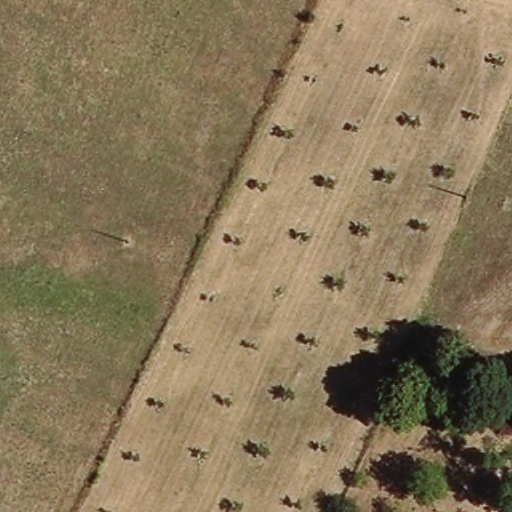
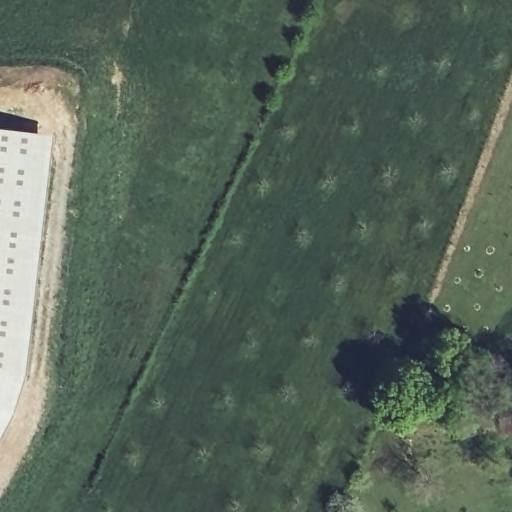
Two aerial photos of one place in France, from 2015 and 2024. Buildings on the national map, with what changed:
new [(14,415),(0,442),(0,130),(55,136),(26,377),(14,415)]
unchanged [(510,417),(512,417),(512,426),(510,417)]

